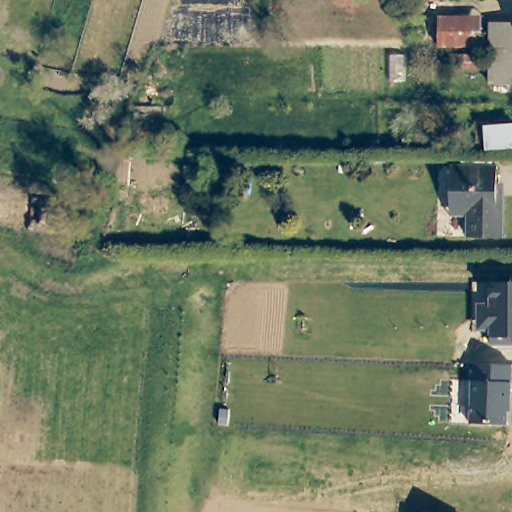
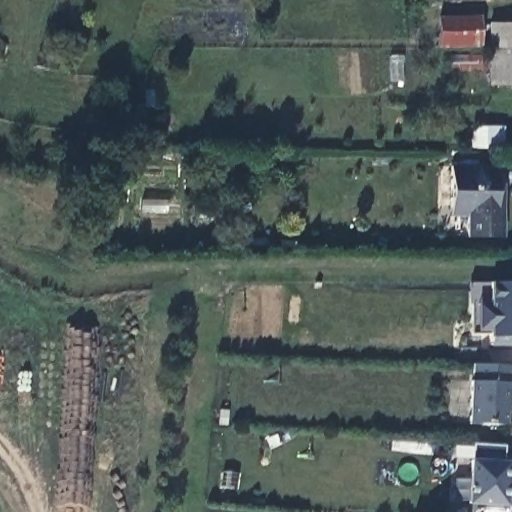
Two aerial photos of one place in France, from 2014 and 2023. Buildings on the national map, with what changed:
unchanged [(482,46),(439,47),(439,18),(482,17),(482,46)]
unchanged [(512,50),(493,50),(492,25),(512,25),(512,50)]
unchanged [(512,51),(512,86),(490,86),(489,51),(512,51)]
unchanged [(480,56),(480,71),(451,71),(451,56),(480,56)]
unchanged [(488,123),(512,123),(512,144),(489,144),(488,123)]
unchanged [(453,163),(500,164),(499,197),(508,197),(507,237),(470,236),(471,216),(453,216),(453,205),(453,163)]
unchanged [(489,330),(477,330),(476,302),(488,302),(488,284),(512,284),(512,345),(490,345),(489,330)]
unchanged [(472,380),(476,380),(476,364),(511,364),(509,411),(505,411),(505,425),(470,423),(472,380)]
new [(506,447),(505,464),(512,465),(512,486),(509,485),(507,507),(470,505),(474,445),(506,447)]

